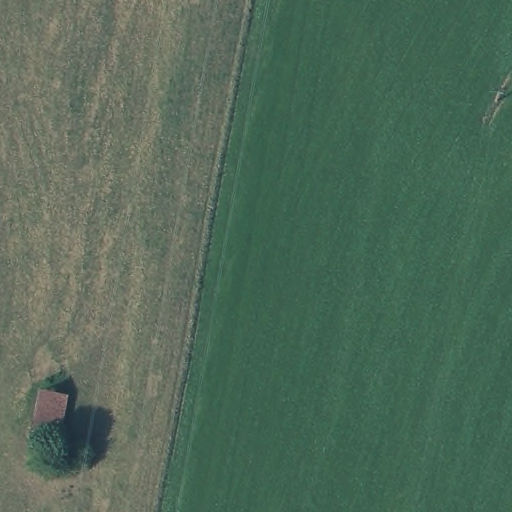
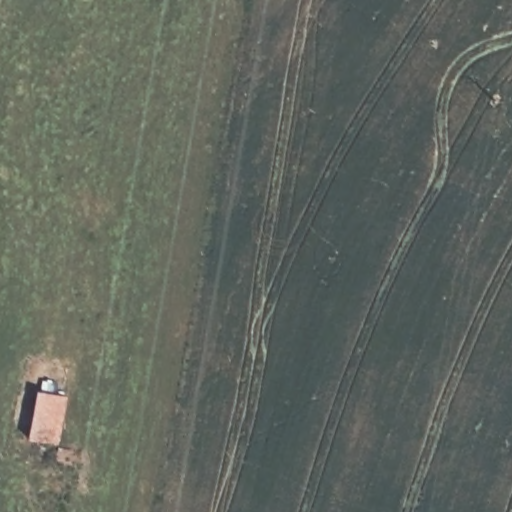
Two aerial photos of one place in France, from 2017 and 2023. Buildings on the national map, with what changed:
unchanged [(73,395),(66,441),(35,435),(42,390),(73,395)]

